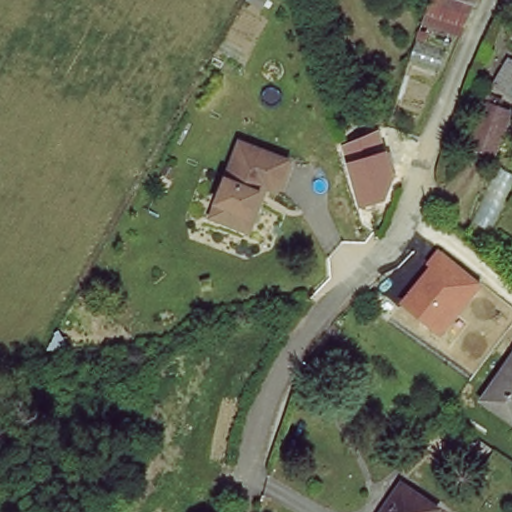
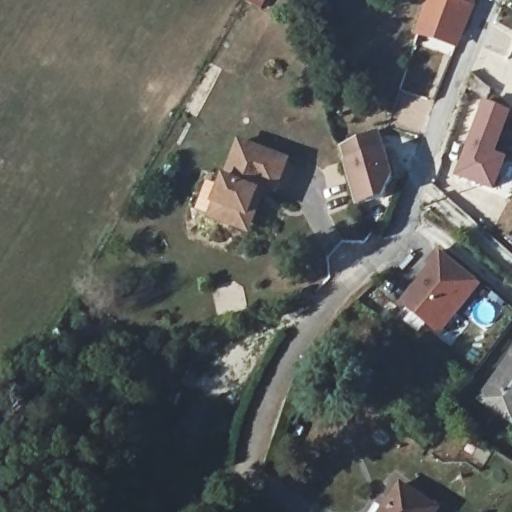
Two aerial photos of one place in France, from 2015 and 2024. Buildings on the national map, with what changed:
unchanged [(472,25),(435,11),(438,0),(482,0),(475,18),(472,25)]
new [(507,109),(491,153),(502,158),(490,190),(452,176),(480,99),(507,109)]
demolished [(490,104),(512,111),(512,113),(499,155),(475,148),(490,104)]
unchanged [(386,199),(361,205),(347,161),(341,145),(378,131),(387,153),(395,176),(386,199)]
unchanged [(298,159),(282,198),(271,193),(254,234),(208,215),(240,138),(298,159)]
unchanged [(440,334),(400,304),(428,268),(426,264),(438,250),(481,285),(440,334)]
unchanged [(483,396),(512,363),(512,416),(510,419),(483,396)]
unchanged [(436,509),(434,512),(391,512),(385,508),(401,485),(436,509)]

